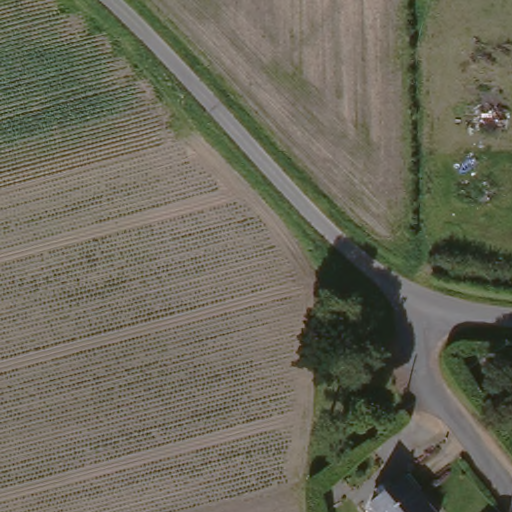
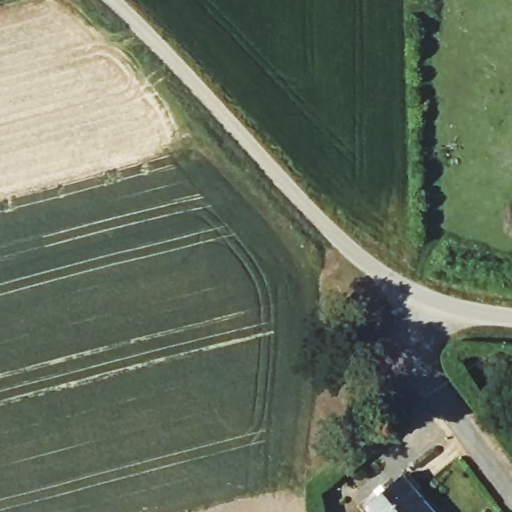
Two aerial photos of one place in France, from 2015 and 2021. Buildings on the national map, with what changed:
unchanged [(370,502),(402,476),(429,512),(378,512),(370,502)]

